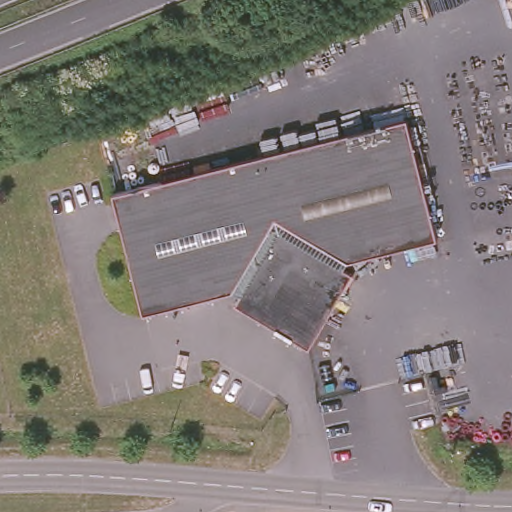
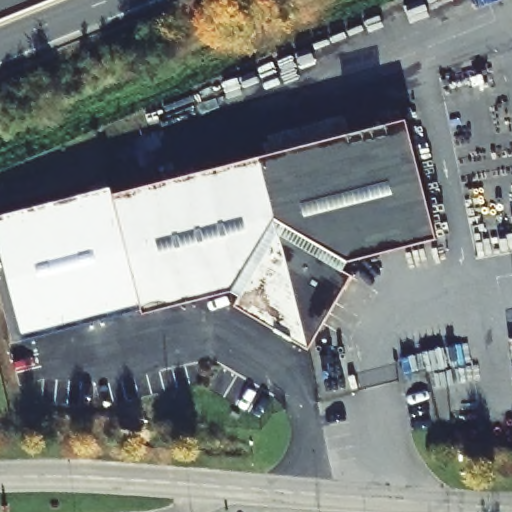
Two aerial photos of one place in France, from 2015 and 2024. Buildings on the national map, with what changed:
unchanged [(435,241),(342,263),(345,277),(303,346),(301,350),(230,312),(225,292),(143,312),(113,192),(255,157),(404,122),(435,241)]
new [(21,340),(0,253),(0,216),(111,187),(113,192),(143,310),(21,340)]

